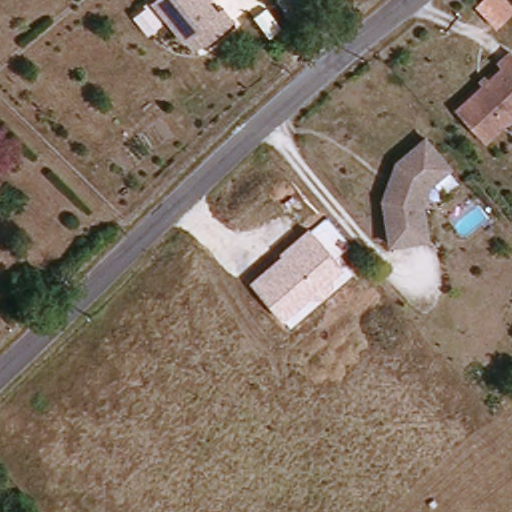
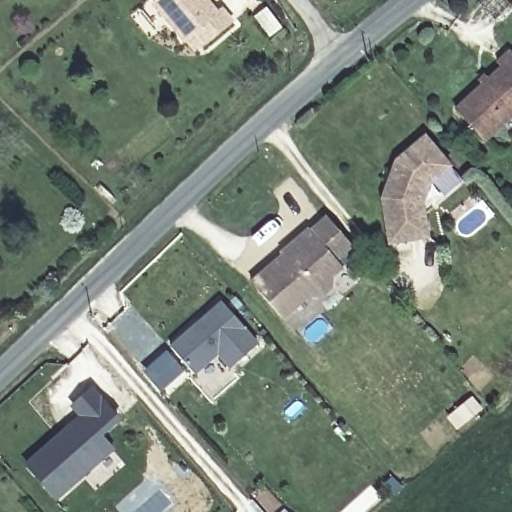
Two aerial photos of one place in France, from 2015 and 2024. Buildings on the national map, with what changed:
unchanged [(157,0),(204,0),(215,14),(220,10),(230,22),(202,46),(191,34),(183,41),(152,4),(157,0)]
new [(512,1),(512,11),(499,24),(478,2),(481,0),(511,0),(512,1)]
unchanged [(498,71),(493,67),(509,53),(512,56),(512,119),(508,122),(477,90),(498,71)]
unchanged [(482,146),(451,111),(477,90),(508,122),(482,146)]
unchanged [(420,202),(426,237),(388,242),(382,197),(395,161),(424,137),(448,166),(427,184),(420,202)]
unchanged [(351,244),(334,259),(346,274),(321,298),(310,297),(284,321),(249,281),(323,215),(351,244)]
new [(224,302),(260,345),(232,368),(220,353),(196,373),(173,346),(224,302)]
new [(75,422),(78,426),(85,420),(73,406),(92,388),(118,420),(100,436),(112,448),(56,498),(27,464),(75,422)]

